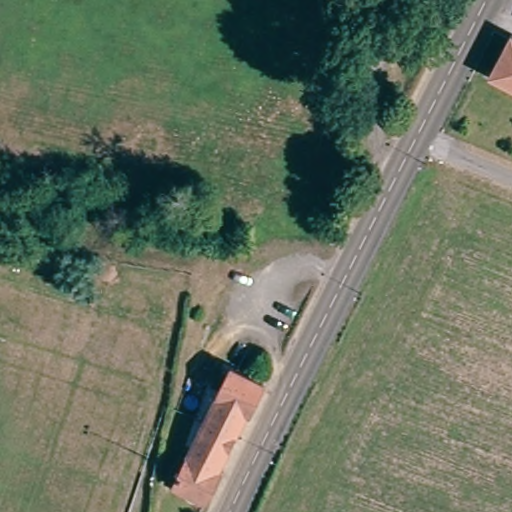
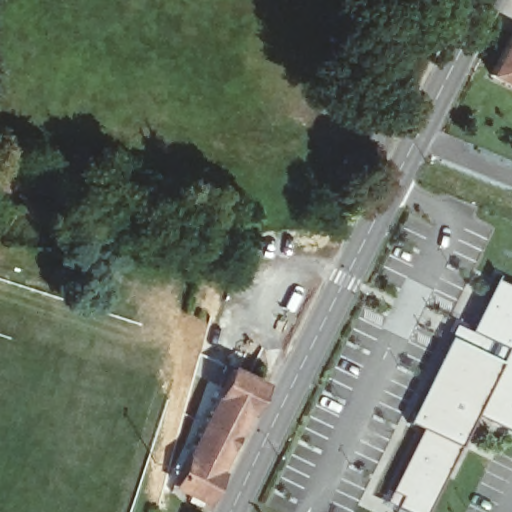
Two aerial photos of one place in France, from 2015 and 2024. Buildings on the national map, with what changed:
unchanged [(507,32),(512,35),(512,85),(487,72),(507,32)]
new [(409,422),(449,340),(457,326),(471,331),(495,280),(512,289),(512,432),(477,415),(462,447),(429,512),(411,512),(389,501),(424,429),(409,422)]
unchanged [(254,416),(250,414),(221,475),(225,476),(214,500),(212,505),(179,490),(235,372),(267,387),(254,416)]

